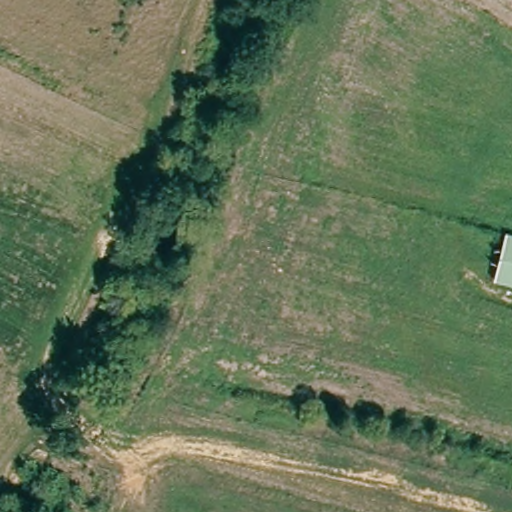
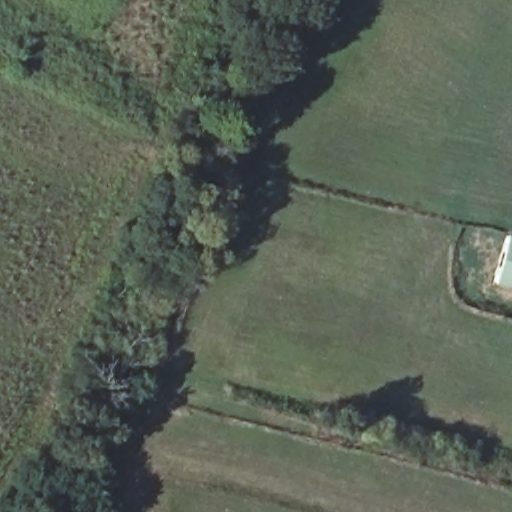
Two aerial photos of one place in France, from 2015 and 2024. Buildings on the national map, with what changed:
unchanged [(512,288),(494,284),(506,232),(512,234),(512,288)]

